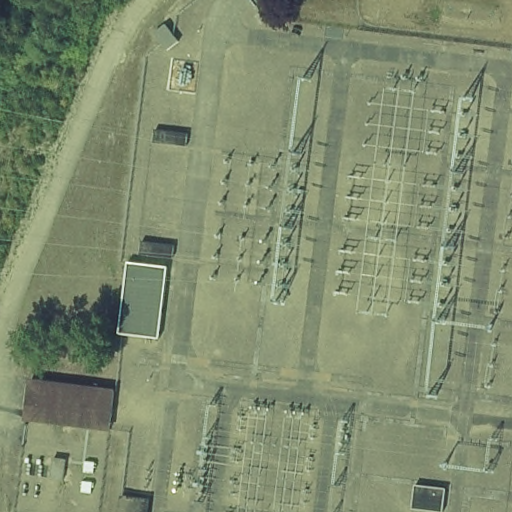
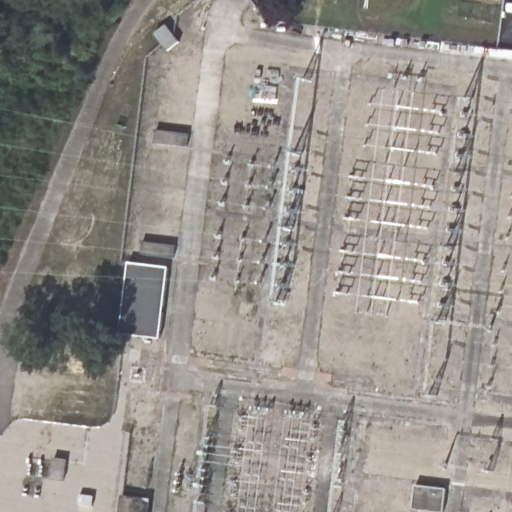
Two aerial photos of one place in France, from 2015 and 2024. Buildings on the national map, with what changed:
unchanged [(155,127),(187,132),(185,148),(154,145),(155,127)]
unchanged [(173,245),(171,258),(139,257),(142,241),(173,245)]
unchanged [(157,343),(122,335),(126,288),(128,266),(166,270),(163,291),(157,343)]
demolished [(32,380),(115,388),(108,431),(27,420),(32,380)]
unchanged [(447,490),(443,512),(435,512),(414,507),(415,483),(447,490)]
unchanged [(150,500),(148,512),(119,512),(120,495),(150,500)]

